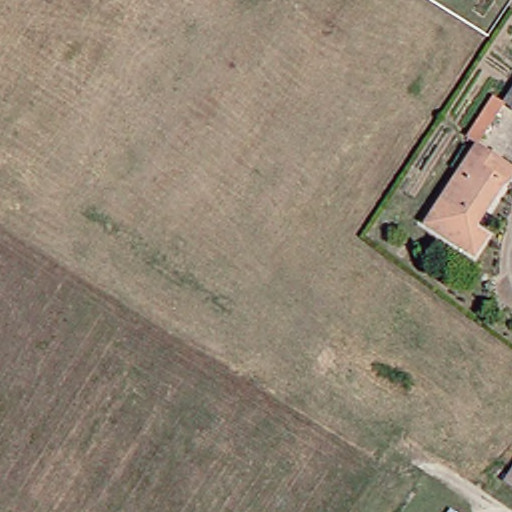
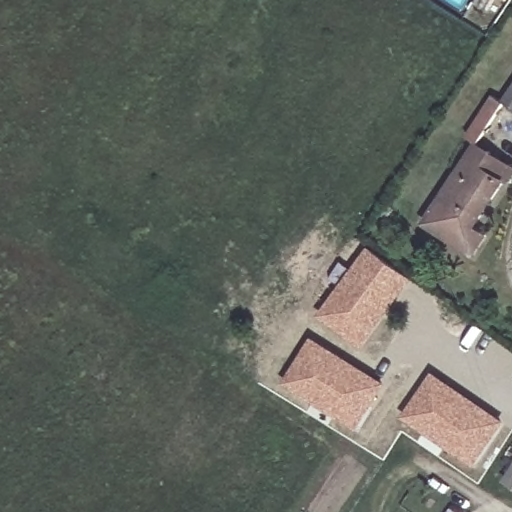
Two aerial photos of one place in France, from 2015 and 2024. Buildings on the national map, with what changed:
unchanged [(496,100),(512,74),(512,109),(496,100)]
unchanged [(462,140),(457,136),(484,93),(489,96),(496,100),(469,144),(462,140)]
unchanged [(497,178),(467,225),(477,231),(463,254),(419,226),(469,144),(483,152),(505,166),(497,178)]
new [(364,349),(319,315),(369,245),(414,280),(364,349)]
new [(359,429),(285,382),(314,336),(388,383),(359,429)]
new [(476,465),(404,416),(433,371),(507,421),(476,465)]
unchanged [(503,479),(512,464),(512,485),(503,479)]

